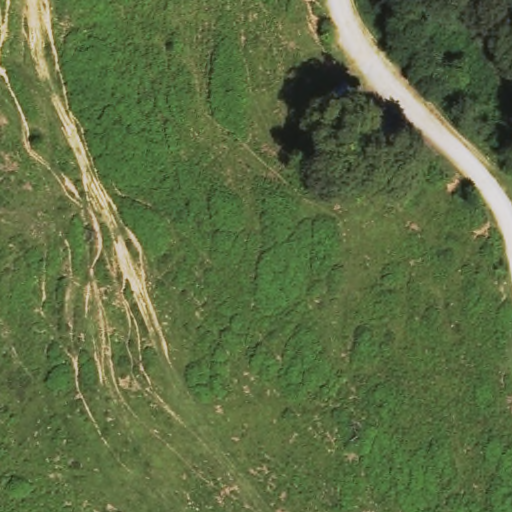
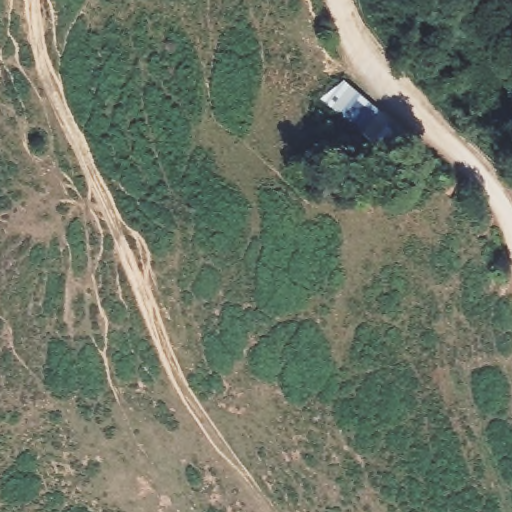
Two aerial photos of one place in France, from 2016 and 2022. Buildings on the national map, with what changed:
unchanged [(313,34),(292,58),(226,4),(230,0),(270,0),(313,34)]

